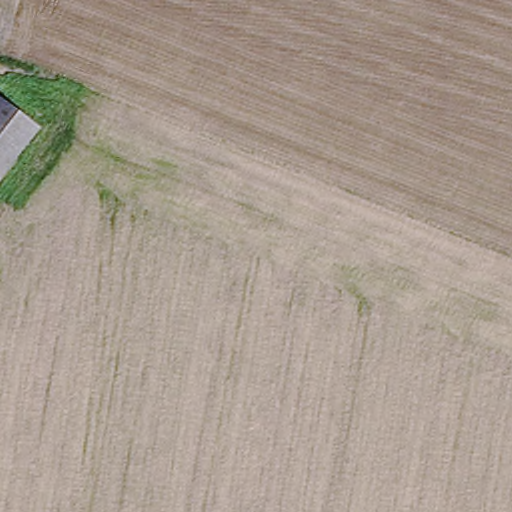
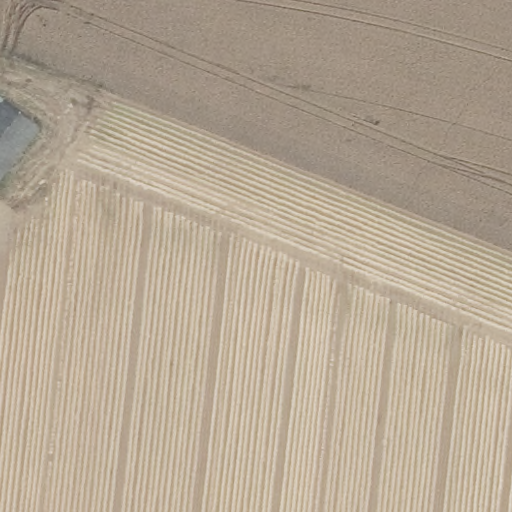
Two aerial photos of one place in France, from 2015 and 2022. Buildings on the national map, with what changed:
unchanged [(0,169),(0,99),(33,125),(0,169)]

